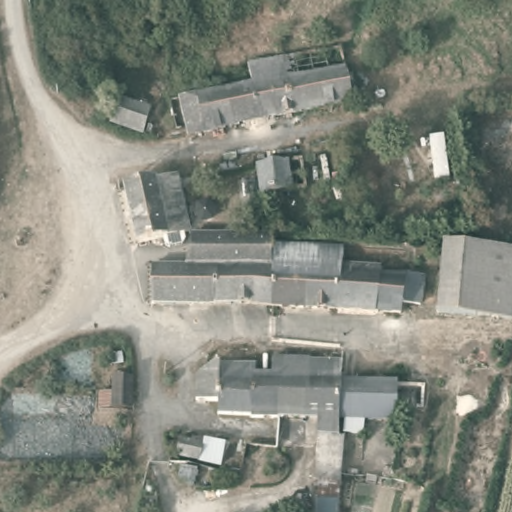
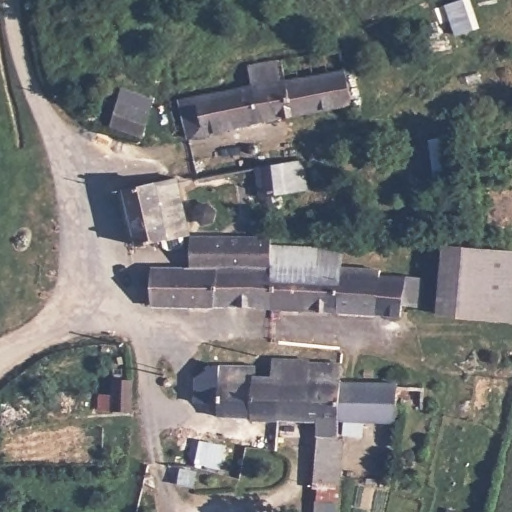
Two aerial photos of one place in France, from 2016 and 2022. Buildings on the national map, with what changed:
unchanged [(336,47),(340,74),(347,102),(308,112),(289,115),(279,60),(336,47)]
unchanged [(289,115),(183,139),(174,99),(249,84),(246,66),(264,63),(279,60),(289,115)]
unchanged [(122,85),(139,88),(136,101),(152,109),(144,137),(109,123),(122,85)]
unchanged [(269,201),(268,190),(260,191),(255,192),(251,163),(287,155),(293,154),(299,153),(306,182),(293,185),(281,186),(282,200),(269,201)]
unchanged [(160,191),(175,189),(177,200),(183,198),(185,215),(168,216),(170,235),(139,240),(130,189),(158,182),(160,191)]
unchanged [(431,299),(404,298),(404,307),(268,301),(271,235),(271,225),(286,222),(291,227),(290,236),(342,236),(343,263),(406,269),(431,269),(431,299)]
unchanged [(154,261),(190,261),(192,233),(271,235),(268,301),(156,296),(154,261)]
unchanged [(441,302),(446,233),(476,233),(512,235),(512,304),(504,304),(441,302)]
unchanged [(282,418),(256,418),(255,366),(268,355),(285,355),(282,418)]
unchanged [(308,419),(282,418),(285,355),(310,355),(311,360),(308,419)]
unchanged [(317,484),(321,420),(308,419),(311,360),(344,361),(344,381),(342,422),(337,486),(317,484)]
unchanged [(256,418),(218,416),(218,402),(204,402),(204,381),(209,365),(255,366),(256,418)]
unchanged [(423,411),(399,410),(400,423),(342,422),(344,381),(401,383),(425,385),(423,411)]
unchanged [(178,455),(181,440),(192,441),(195,435),(227,444),(222,464),(178,455)]
unchanged [(198,464),(194,481),(179,478),(184,462),(198,464)]
unchanged [(316,502),(317,484),(337,486),(336,512),(321,512),(321,502),(316,502)]

